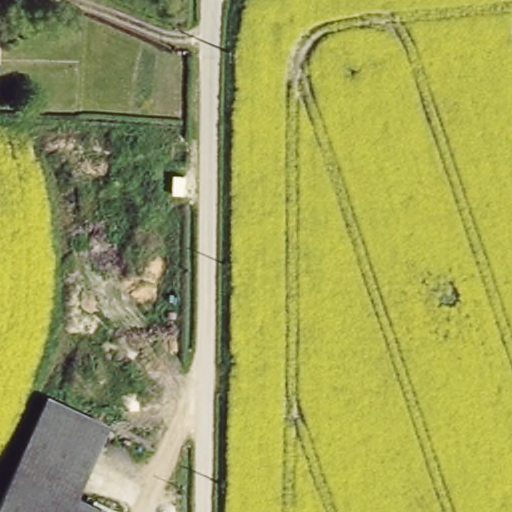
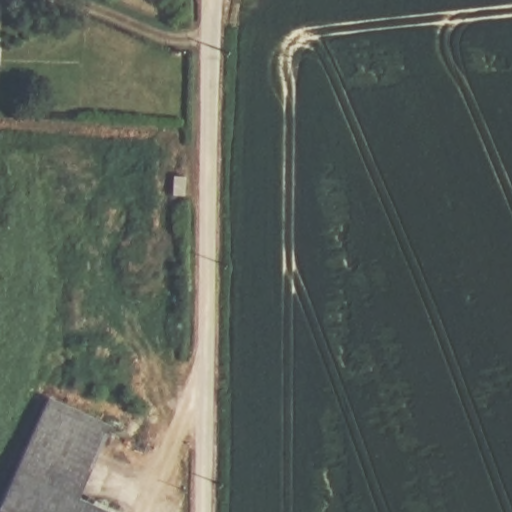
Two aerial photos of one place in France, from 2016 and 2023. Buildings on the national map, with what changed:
unchanged [(106,426),(90,470),(23,441),(42,402),(106,426)]
unchanged [(90,470),(81,492),(116,507),(114,512),(0,512),(0,504),(23,441),(90,470)]

